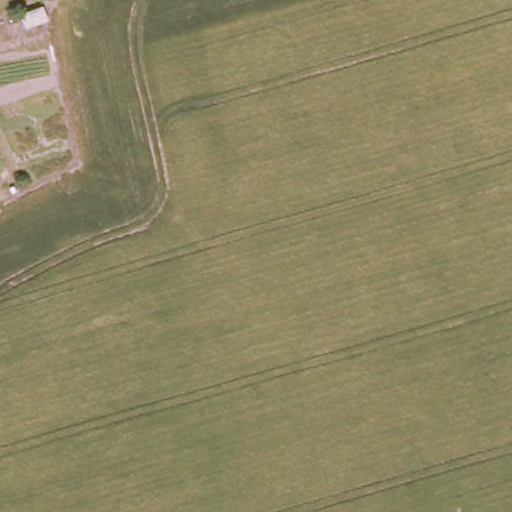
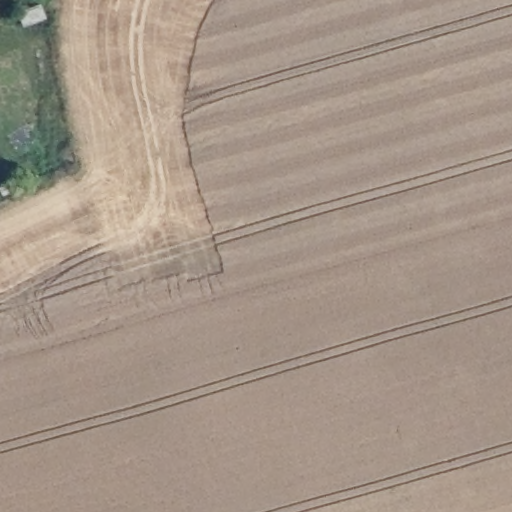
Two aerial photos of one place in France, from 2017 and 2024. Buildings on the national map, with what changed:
unchanged [(51,0),(58,21),(27,30),(19,6),(39,0),(51,0)]

